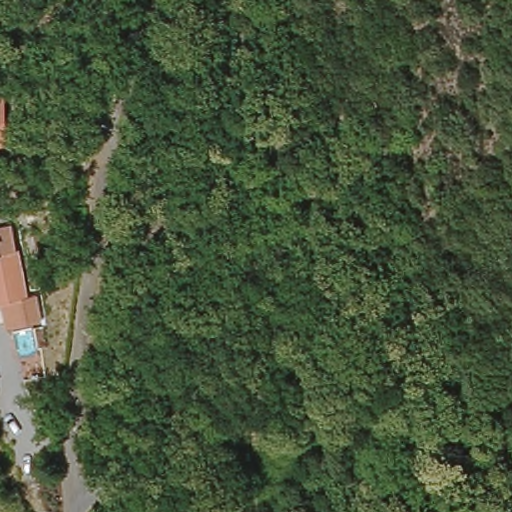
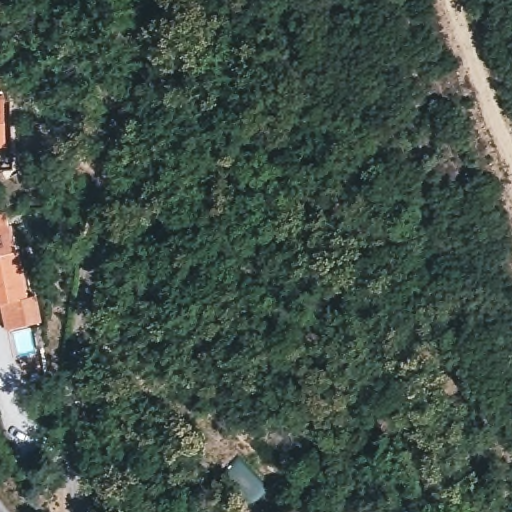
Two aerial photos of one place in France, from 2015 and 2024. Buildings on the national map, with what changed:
unchanged [(8,146),(0,146),(0,98),(10,98),(8,146)]
unchanged [(0,300),(0,226),(5,225),(20,295),(0,300)]
unchanged [(34,300),(41,328),(6,331),(0,309),(0,300),(20,295),(21,301),(34,300)]

